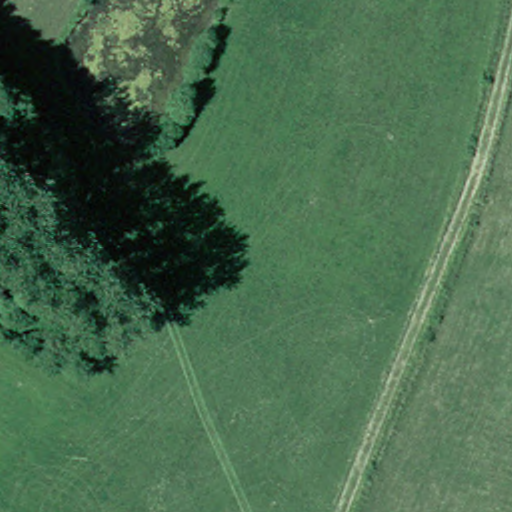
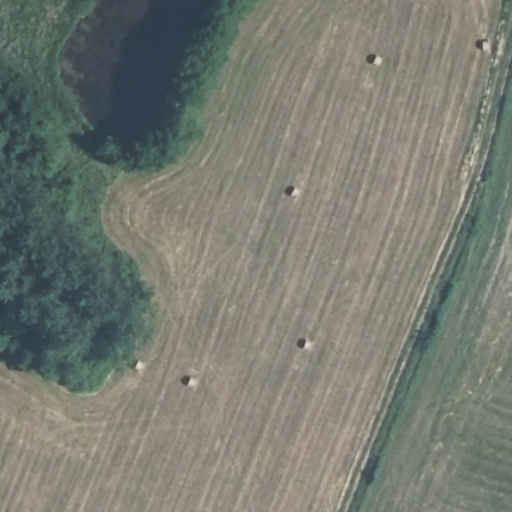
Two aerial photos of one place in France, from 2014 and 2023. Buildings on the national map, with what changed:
[]

